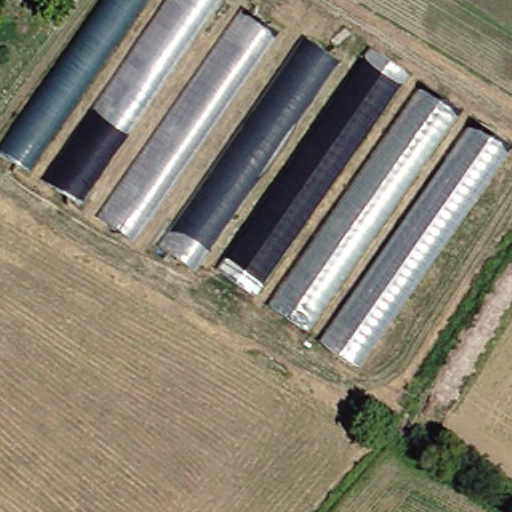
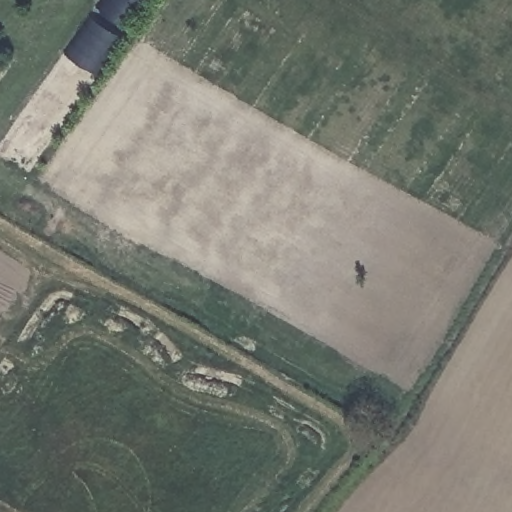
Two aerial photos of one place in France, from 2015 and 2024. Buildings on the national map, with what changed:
unchanged [(103,0),(148,0),(26,172),(0,151),(0,145),(103,0)]
demolished [(173,0),(218,0),(80,204),(47,185),(173,0)]
demolished [(239,15),(276,38),(137,244),(101,222),(239,15)]
demolished [(194,272),(157,249),(299,42),(336,65),(194,272)]
demolished [(512,160),(367,368),(218,271),(376,44),(512,135),(512,160)]

